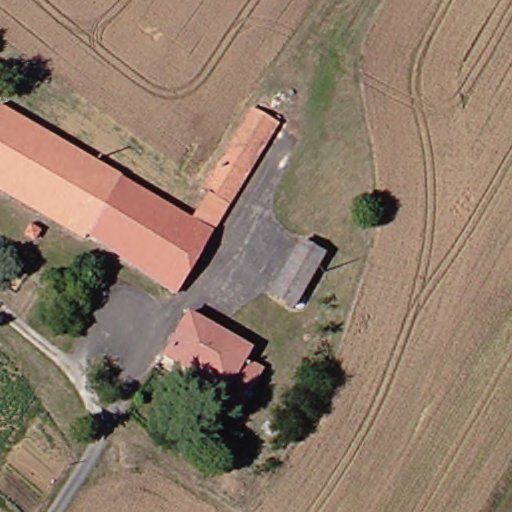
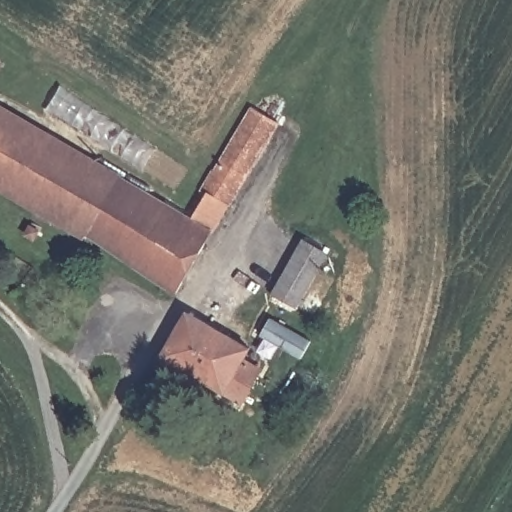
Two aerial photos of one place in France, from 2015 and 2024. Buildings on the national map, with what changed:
unchanged [(170,297),(86,233),(80,243),(0,192),(0,106),(184,222),(201,197),(196,194),(210,172),(214,175),(263,96),(274,104),(284,110),(255,164),(237,193),(227,208),(170,297)]
unchanged [(295,310),(272,293),(307,241),(331,257),(295,310)]
unchanged [(238,405),(163,357),(191,314),(250,353),(243,364),(259,375),(238,405)]

